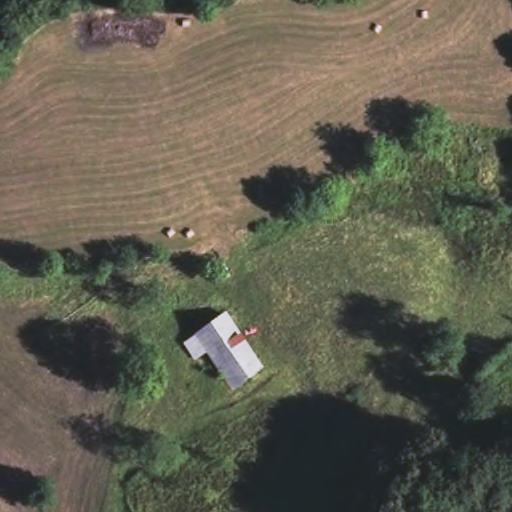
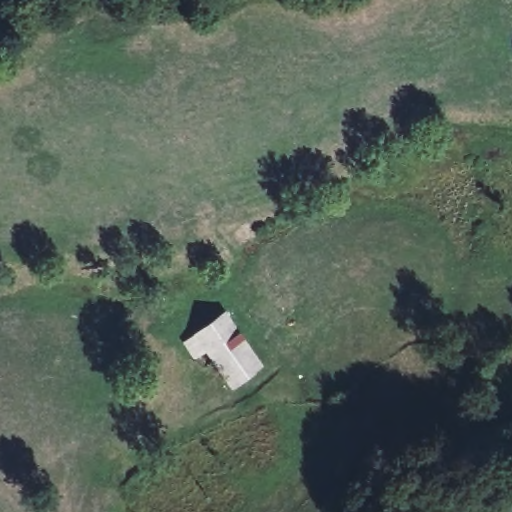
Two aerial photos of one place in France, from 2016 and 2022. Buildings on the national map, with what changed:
unchanged [(267,366),(235,388),(209,358),(199,364),(186,346),(228,316),(267,366)]

